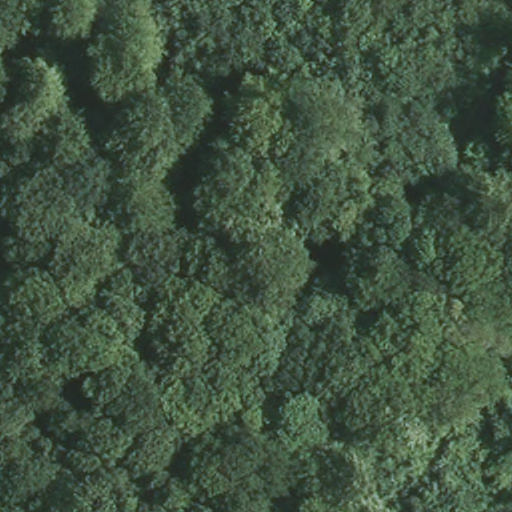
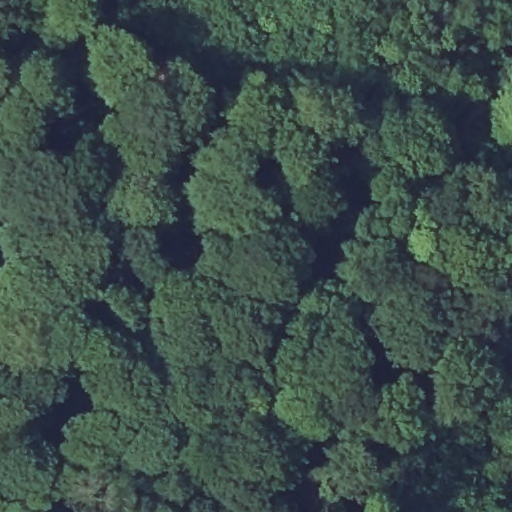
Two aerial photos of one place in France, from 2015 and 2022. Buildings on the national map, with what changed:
[]

